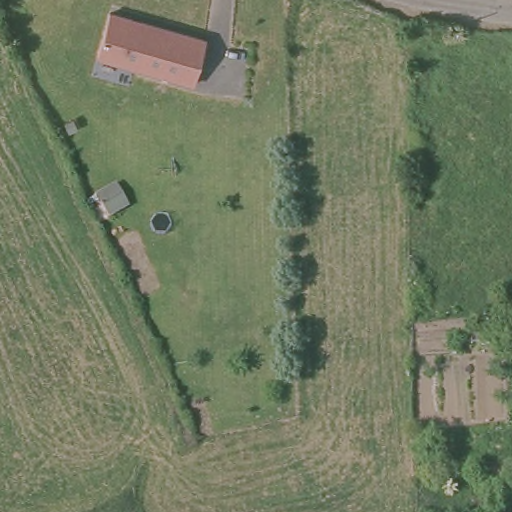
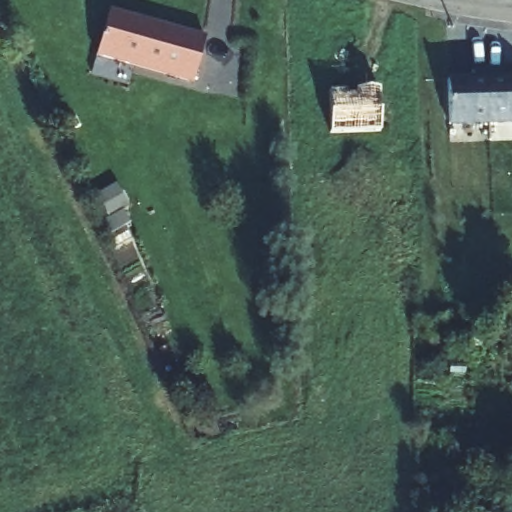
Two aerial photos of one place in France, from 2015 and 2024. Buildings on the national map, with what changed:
unchanged [(135,15),(134,17),(142,20),(142,17),(207,37),(195,79),(99,52),(111,8),(135,15)]
new [(472,79),(471,71),(487,70),(488,123),(448,124),(447,79),(472,79)]
new [(502,70),(502,78),(512,78),(512,123),(488,123),(487,70),(502,70)]
new [(381,132),(330,134),(327,90),(379,89),(381,132)]

